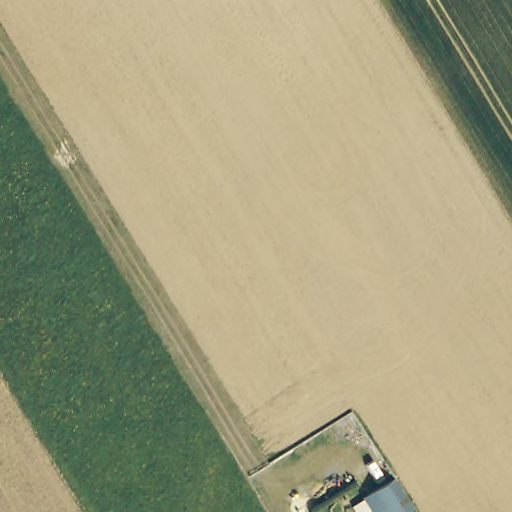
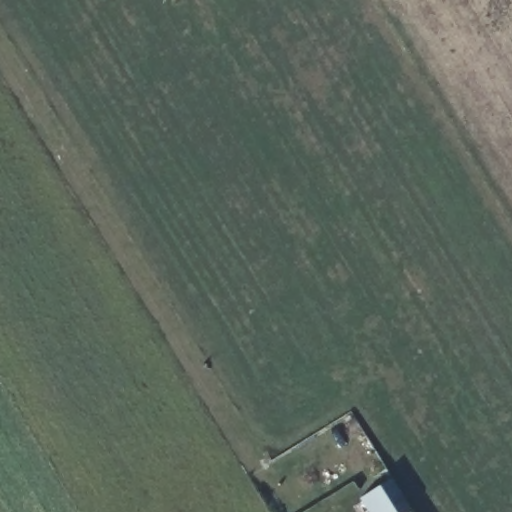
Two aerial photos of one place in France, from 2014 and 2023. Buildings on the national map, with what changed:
unchanged [(362,496),(393,477),(415,512),(372,512),(362,496)]

